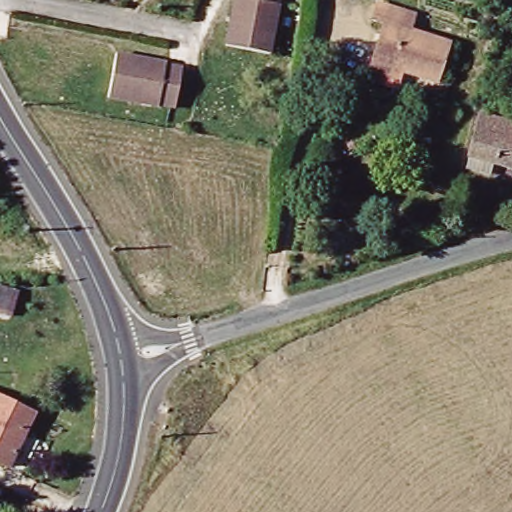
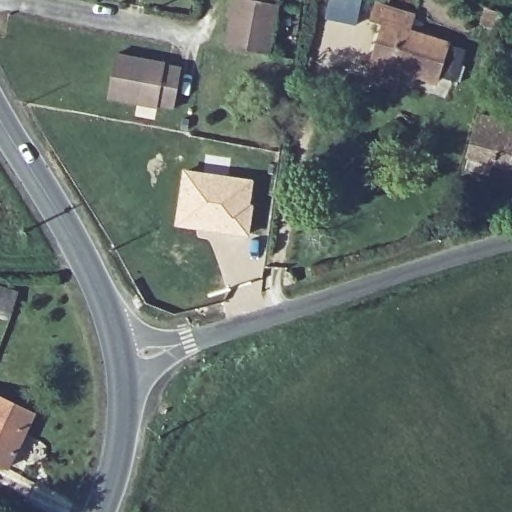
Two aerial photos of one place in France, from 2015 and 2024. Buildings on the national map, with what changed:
unchanged [(238,0),(279,0),(271,53),(231,47),(238,0)]
unchanged [(374,52),(380,25),(370,23),(375,5),(399,12),(395,23),(446,40),(433,81),(402,72),(370,61),(374,52)]
unchanged [(120,55),(181,66),(174,106),(113,95),(120,55)]
unchanged [(512,163),(492,156),(489,168),(466,160),(482,109),(512,119),(512,163)]
new [(182,167),(255,179),(249,237),(173,225),(182,167)]
new [(19,292),(11,317),(0,314),(0,287),(19,292)]
unchanged [(34,413),(8,467),(0,463),(0,396),(34,413)]

